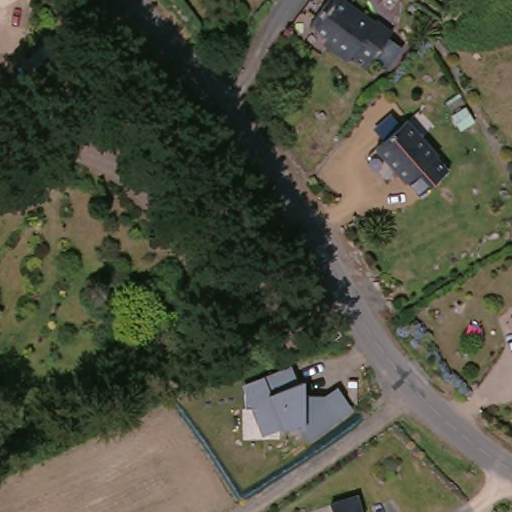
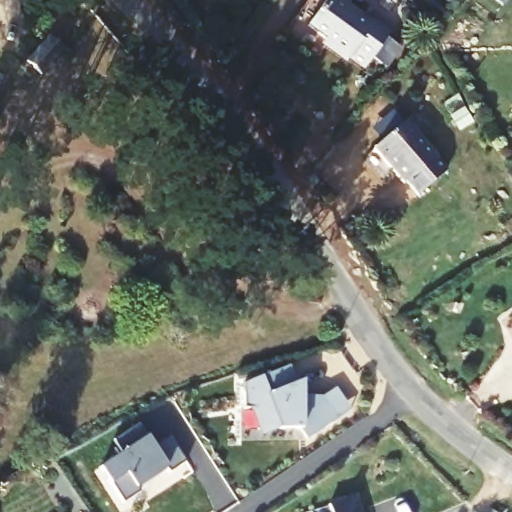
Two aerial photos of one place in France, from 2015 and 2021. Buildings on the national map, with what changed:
unchanged [(360,75),(345,65),(342,66),(322,53),(324,51),(303,36),(328,1),(368,27),(372,26),(387,37),(360,75)]
unchanged [(37,75),(21,62),(41,37),(57,49),(37,75)]
unchanged [(433,165),(446,177),(418,203),(406,190),(403,191),(372,159),(404,130),(435,163),(433,165)]
unchanged [(510,323),(512,321),(512,327),(510,323)]
unchanged [(310,440),(300,426),(277,429),(262,436),(250,407),(244,409),(243,385),(291,365),(300,383),(305,381),(307,395),(326,396),(337,387),(353,410),(310,440)]
new [(123,451),(114,438),(140,420),(155,444),(171,433),(188,458),(171,469),(168,464),(138,484),(141,489),(125,500),(101,465),(123,451)]
unchanged [(339,500),(365,491),(372,510),(368,511),(369,512),(343,512),(339,500)]

